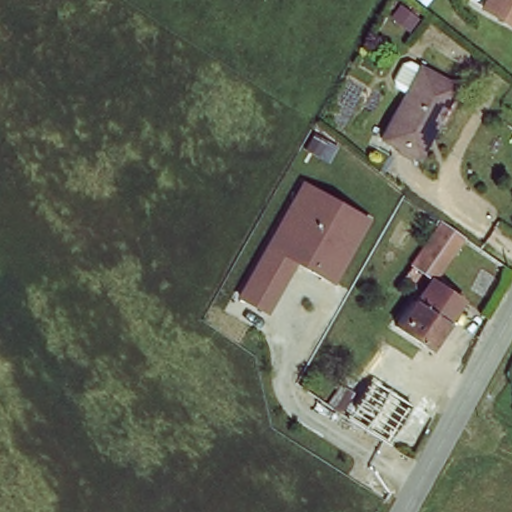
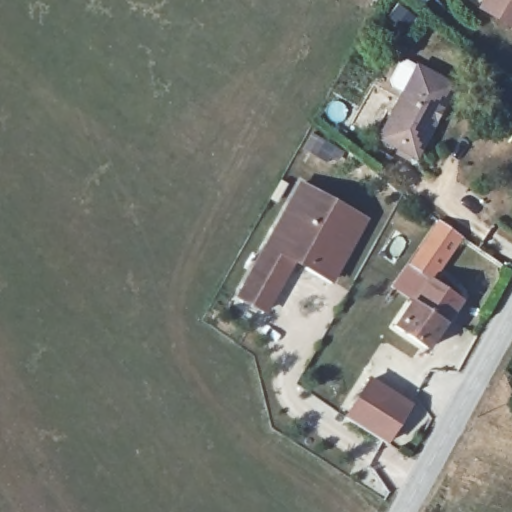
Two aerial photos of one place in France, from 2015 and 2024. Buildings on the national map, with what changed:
unchanged [(485,5),(487,0),(512,0),(512,20),(511,22),(485,5)]
unchanged [(398,85),(412,59),(427,67),(462,86),(424,158),(388,138),(413,93),(398,85)]
unchanged [(340,284),(301,263),(272,313),(239,296),(306,178),(374,214),(340,284)]
unchanged [(430,278),(411,264),(441,220),(463,236),(432,280),(430,278)]
unchanged [(432,280),(460,300),(429,349),(394,324),(410,297),(414,299),(430,278),(432,280)]
new [(370,376),(410,402),(386,440),(346,414),(370,376)]

